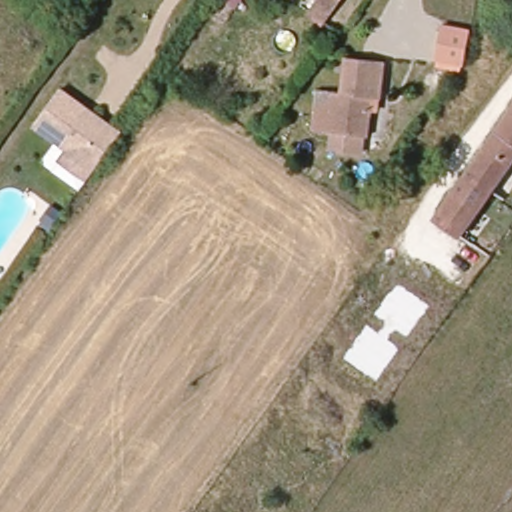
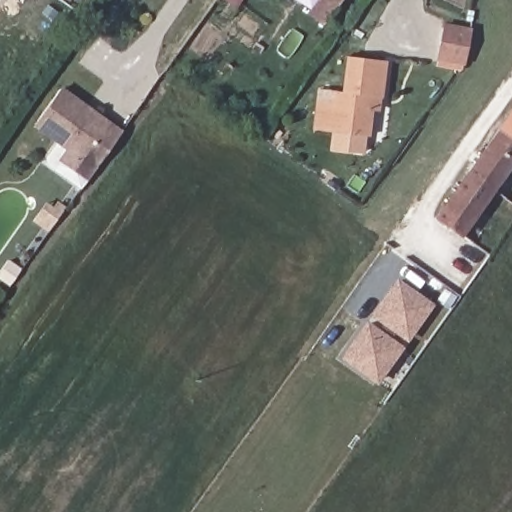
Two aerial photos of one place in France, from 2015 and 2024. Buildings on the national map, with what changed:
unchanged [(318,12),(306,3),(308,0),(327,0),(318,12)]
unchanged [(434,55),(440,20),(467,26),(461,60),(434,55)]
unchanged [(319,130),(321,98),(338,99),(339,90),(347,91),(350,56),(390,60),(388,95),(377,96),(374,135),(319,130)]
unchanged [(74,146),(39,121),(63,87),(126,130),(95,175),(91,179),(65,161),(74,146)]
unchanged [(487,147),(512,114),(512,163),(511,164),(487,147)]
unchanged [(487,147),(511,164),(456,236),(432,219),(487,147)]
new [(396,277),(434,304),(408,342),(370,315),(396,277)]
new [(339,357),(366,320),(404,347),(377,385),(339,357)]

